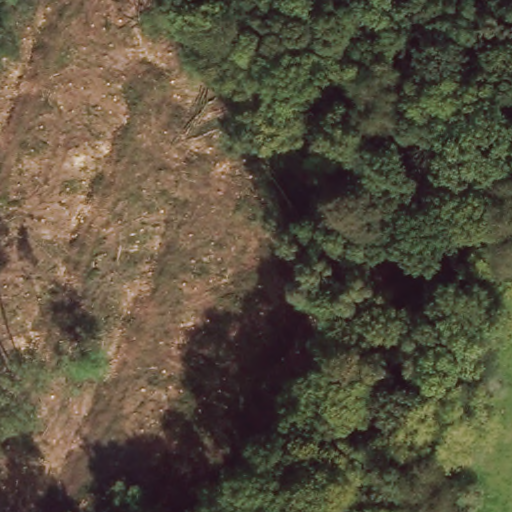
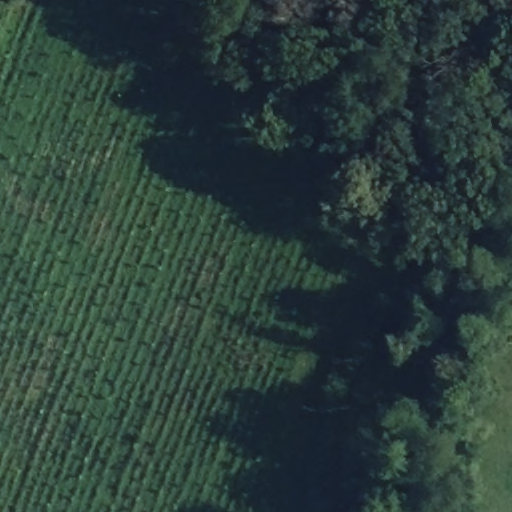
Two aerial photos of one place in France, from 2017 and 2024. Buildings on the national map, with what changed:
unchanged [(428,196),(436,207),(420,220),(412,212),(428,196)]

